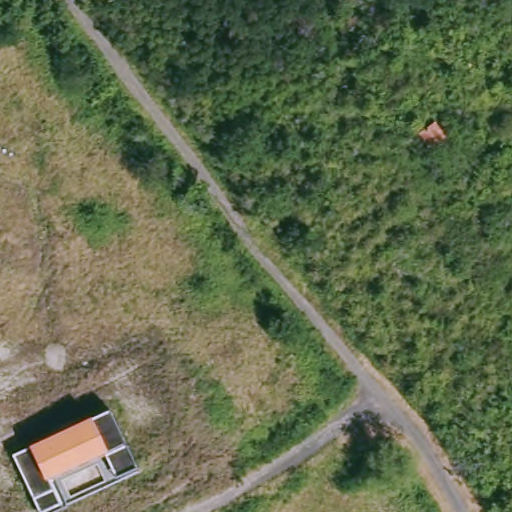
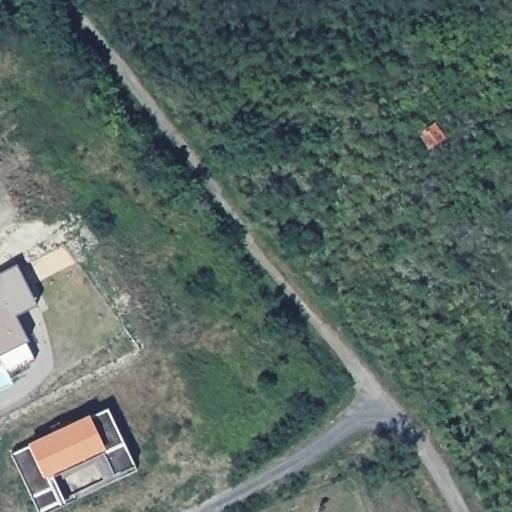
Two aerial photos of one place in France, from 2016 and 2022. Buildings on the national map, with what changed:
unchanged [(443,143),(431,150),(420,134),(432,126),(443,143)]
new [(11,376),(2,358),(0,359),(0,275),(20,264),(32,289),(39,304),(18,315),(32,343),(28,344),(38,363),(11,376)]
unchanged [(39,510),(13,453),(27,443),(88,414),(108,408),(133,463),(113,473),(63,502),(39,510)]

